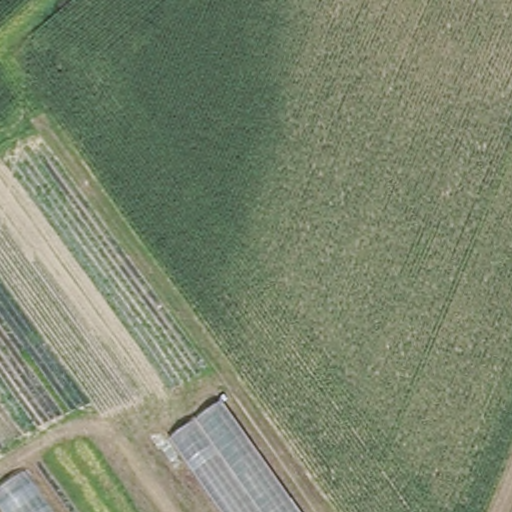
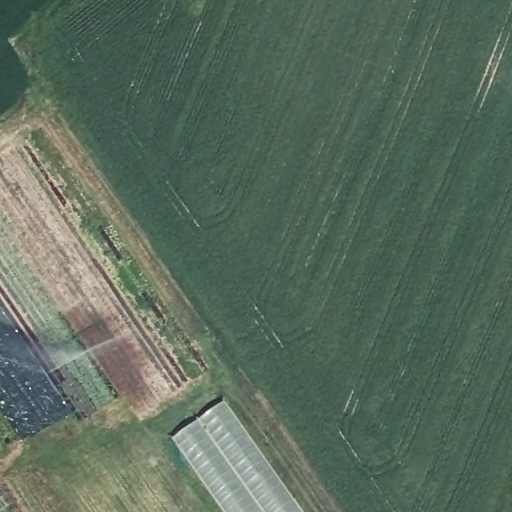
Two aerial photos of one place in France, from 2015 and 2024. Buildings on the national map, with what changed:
unchanged [(218,512),(166,439),(220,401),(299,512),(218,512)]
new [(3,512),(0,508),(0,488),(25,472),(53,512),(3,512)]

